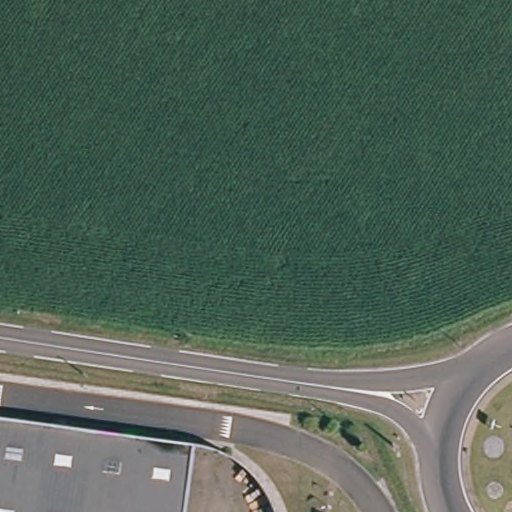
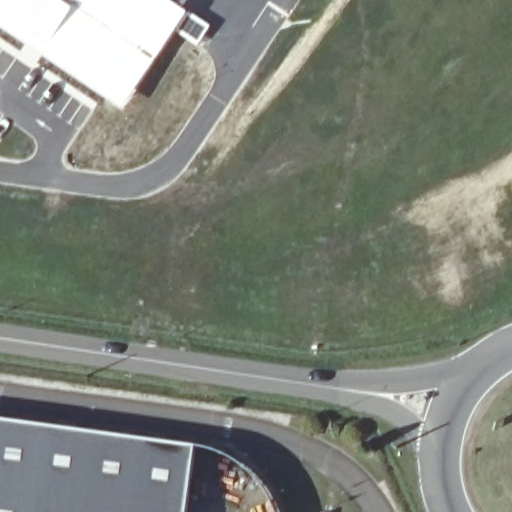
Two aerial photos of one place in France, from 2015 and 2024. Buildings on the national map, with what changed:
new [(211,25),(199,45),(177,31),(122,110),(0,28),(0,0),(173,0),(211,25)]
unchanged [(0,512),(0,417),(200,443),(191,512),(0,512)]

